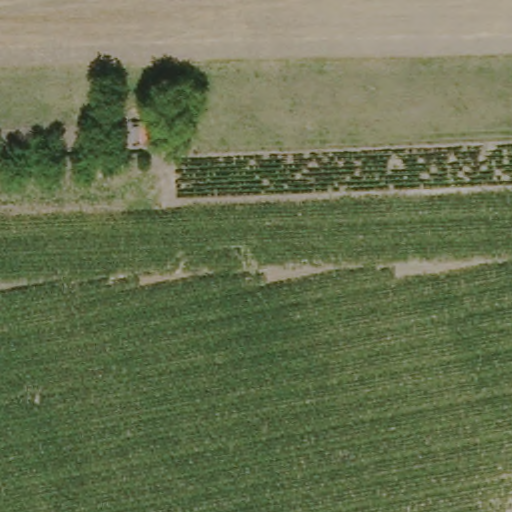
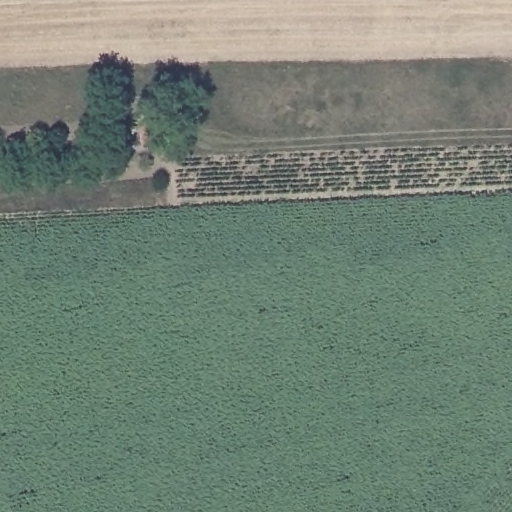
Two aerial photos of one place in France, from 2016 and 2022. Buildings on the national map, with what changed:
unchanged [(145,146),(143,122),(156,121),(158,146),(145,146)]

